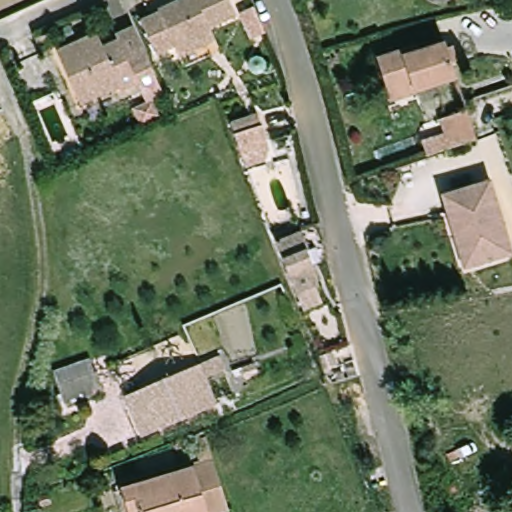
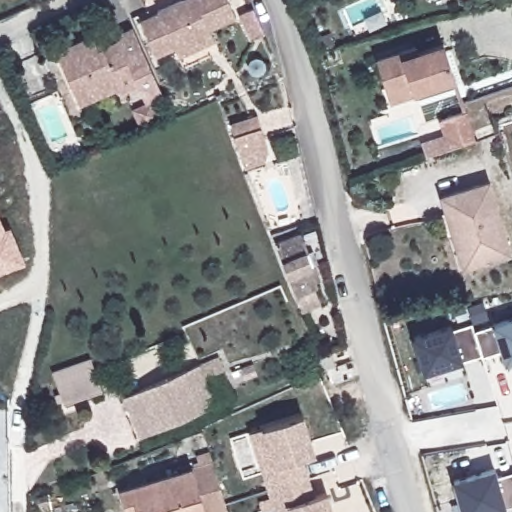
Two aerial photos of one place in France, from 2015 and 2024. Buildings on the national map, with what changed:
unchanged [(178,55),(175,47),(174,45),(155,54),(139,18),(158,10),(157,8),(174,0),(232,0),(238,13),(209,26),(211,31),(215,39),(178,55)]
unchanged [(120,86),(80,103),(57,50),(96,32),(101,42),(116,36),(114,31),(132,23),(163,93),(153,97),(160,113),(138,123),(131,106),(145,100),(136,82),(121,88),(120,86)]
unchanged [(391,89),(381,57),(418,45),(421,55),(447,47),(458,82),(420,94),(395,102),(391,89)]
unchanged [(436,122),(468,112),(478,142),(445,152),(436,122)]
unchanged [(256,115),(266,147),(248,153),(250,159),(241,161),(230,124),(256,115)]
unchanged [(455,222),(448,198),(496,184),(512,240),(512,258),(482,267),(469,271),(455,222)]
new [(0,274),(0,214),(6,229),(11,226),(26,263),(0,274)]
unchanged [(300,232),(308,252),(315,249),(321,262),(314,265),(320,280),(311,284),(321,305),(302,312),(274,242),(300,232)]
new [(453,324),(454,327),(472,323),(475,330),(493,323),(512,317),(512,361),(505,364),(500,349),(463,360),(464,361),(424,373),(412,336),(453,324)]
unchanged [(311,355),(312,355),(325,351),(329,365),(318,369),(317,369),(311,355)]
unchanged [(146,435),(130,396),(203,368),(223,359),(228,372),(208,380),(218,407),(146,435)]
unchanged [(100,392),(63,405),(56,386),(51,373),(86,360),(91,373),(94,372),(100,392)]
new [(312,456),(318,473),(307,476),(313,496),(326,492),(332,512),(275,512),(273,507),(274,507),(247,432),(265,424),(266,426),(301,414),(315,454),(312,456)]
unchanged [(133,480),(216,456),(231,500),(231,504),(204,512),(132,512),(123,483),(133,480)]
new [(499,475),(512,472),(512,504),(507,506),(508,510),(499,512),(462,512),(453,480),(497,467),(499,475)]

